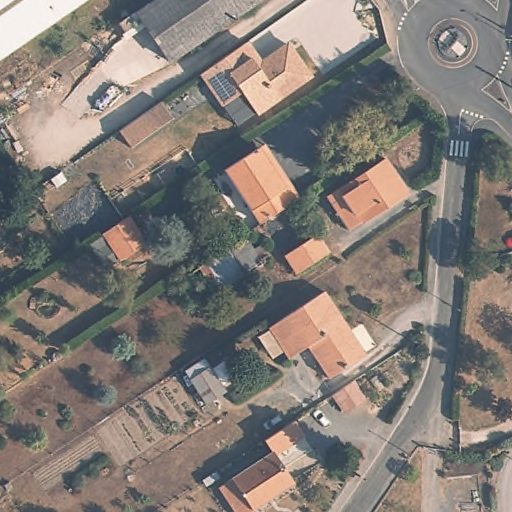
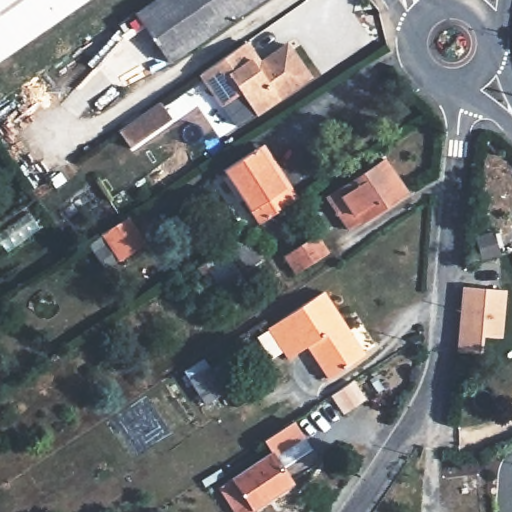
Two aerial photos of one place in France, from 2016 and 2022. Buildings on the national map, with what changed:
unchanged [(0,2),(0,0),(3,0),(0,2)]
unchanged [(0,41),(0,2),(3,0),(58,0),(0,41)]
unchanged [(0,60),(0,41),(58,0),(88,0),(0,60)]
unchanged [(156,29),(141,39),(134,29),(128,33),(122,24),(142,11),(145,12),(162,0),(262,0),(176,60),(156,29)]
unchanged [(243,48),(244,49),(258,69),(285,50),(307,82),(261,114),(246,93),(228,106),(206,74),(243,48)]
new [(165,97),(176,113),(134,141),(123,124),(165,97)]
unchanged [(281,212),(265,222),(239,183),(229,170),(263,147),(273,161),(299,200),(281,212)]
unchanged [(333,198),(389,158),(412,193),(355,232),(333,198)]
unchanged [(128,220),(145,247),(117,265),(101,238),(128,220)]
unchanged [(290,253),(312,238),(325,256),(302,271),(290,253)]
unchanged [(241,240),(250,251),(256,248),(260,256),(257,257),(255,261),(257,264),(258,265),(211,296),(194,272),(241,240)]
new [(464,289),(505,292),(502,340),(482,338),(481,356),(459,354),(464,289)]
unchanged [(328,377),(307,346),(287,359),(266,329),(323,292),(363,353),(328,377)]
unchanged [(204,401),(188,377),(206,365),(223,389),(204,401)]
unchanged [(274,455),(294,486),(254,512),(235,512),(220,491),(274,455)]

